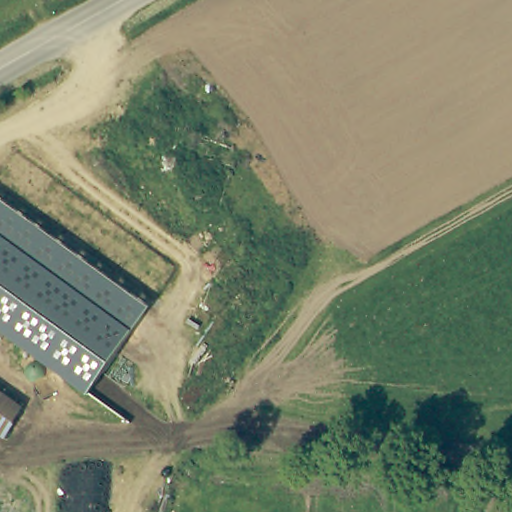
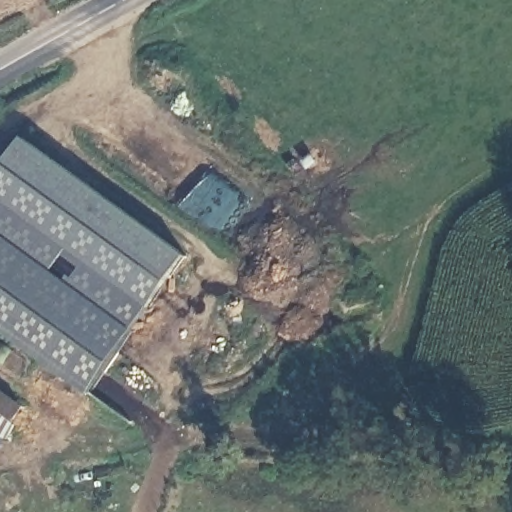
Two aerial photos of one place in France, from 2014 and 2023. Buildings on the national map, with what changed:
new [(25,137),(191,257),(152,309),(0,198),(0,173),(25,137)]
unchanged [(0,331),(0,198),(152,309),(89,398),(0,331)]
unchanged [(0,436),(0,393),(23,408),(3,439),(0,436)]

